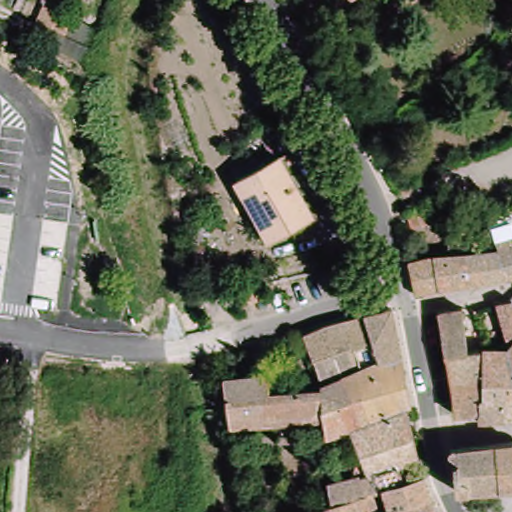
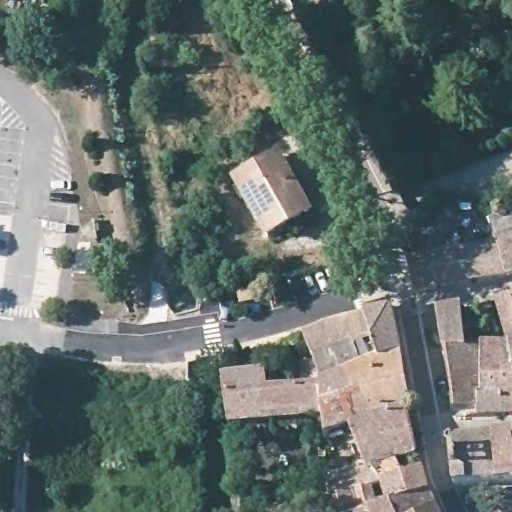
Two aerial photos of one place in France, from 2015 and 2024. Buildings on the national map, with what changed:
unchanged [(35,25),(46,6),(77,23),(63,40),(35,25)]
unchanged [(258,245),(228,186),(270,162),(302,221),(258,245)]
unchanged [(425,210),(427,219),(412,226),(407,216),(425,210)]
unchanged [(494,221),(512,211),(512,243),(500,248),(497,235),(494,221)]
unchanged [(500,248),(512,243),(512,276),(412,290),(406,263),(411,262),(500,248)]
unchanged [(360,259),(361,256),(368,262),(364,270),(357,266),(360,259)]
unchanged [(227,290),(230,303),(215,308),(213,293),(227,290)]
unchanged [(280,385),(315,385),(305,331),(307,330),(320,383),(373,359),(362,311),(387,302),(411,400),(403,403),(325,433),(324,418),(320,418),(235,420),(228,420),(224,372),(266,370),(280,369),(280,385)]
unchanged [(327,323),(362,311),(373,359),(320,383),(307,330),(327,323)]
unchanged [(477,379),(449,387),(441,353),(432,313),(452,311),(463,351),(477,350),(477,379)]
unchanged [(501,393),(480,393),(480,351),(502,351),(512,344),(512,414),(500,415),(501,393)]
unchanged [(477,379),(477,393),(480,393),(501,393),(500,415),(457,418),(449,387),(477,379)]
unchanged [(412,433),(402,436),(409,455),(398,459),(406,478),(425,473),(430,494),(389,508),(383,490),(372,493),(363,496),(357,473),(365,471),(352,428),(405,406),(412,433)]
unchanged [(453,490),(449,447),(510,438),(512,438),(512,482),(487,485),(453,490)]
unchanged [(354,482),(358,497),(363,496),(372,493),(378,512),(322,512),(320,507),(327,505),(327,490),(354,482)]
unchanged [(430,494),(437,507),(427,512),(379,512),(389,508),(430,494)]
unchanged [(439,512),(427,512),(437,507),(439,512)]

